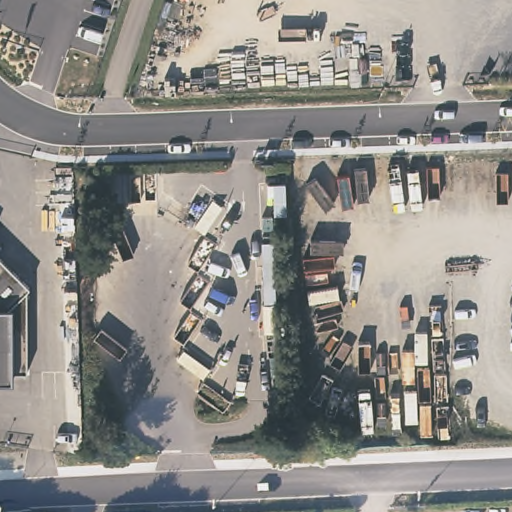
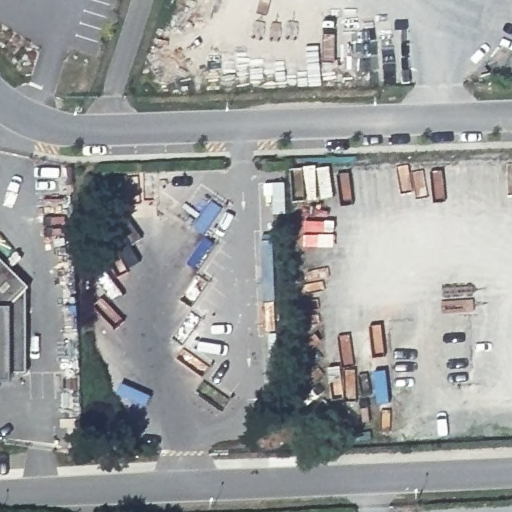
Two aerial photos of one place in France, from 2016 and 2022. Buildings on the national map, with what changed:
unchanged [(26,285),(27,367),(0,367),(0,254),(29,282),(26,285)]

